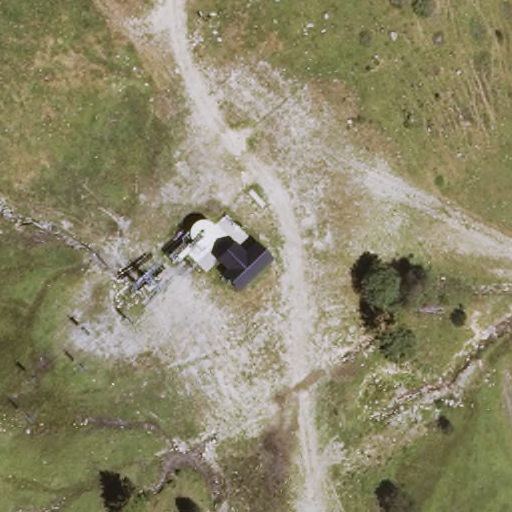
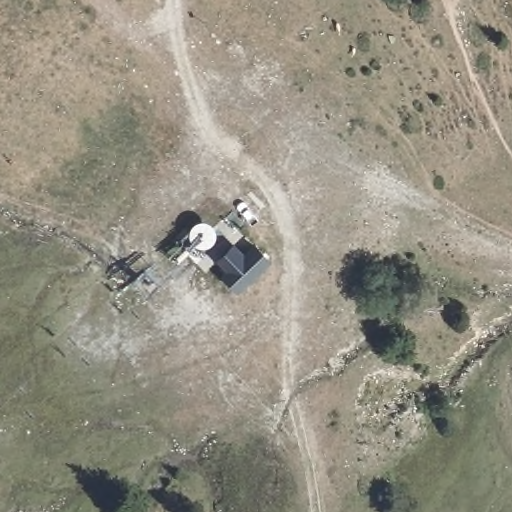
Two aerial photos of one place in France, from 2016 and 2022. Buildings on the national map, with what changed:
unchanged [(236,244),(247,251),(256,242),(272,261),(240,289),(224,272),(229,269),(219,258),(236,244)]

